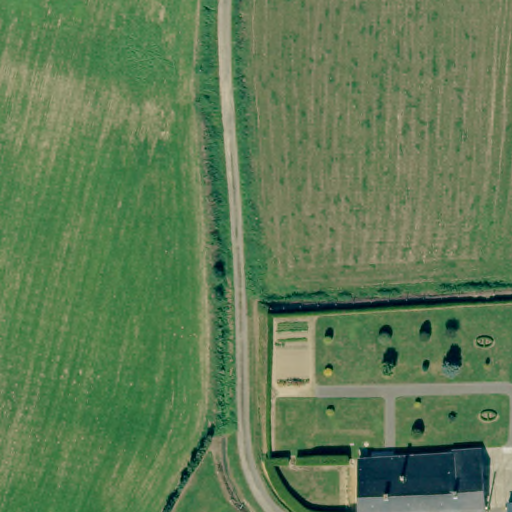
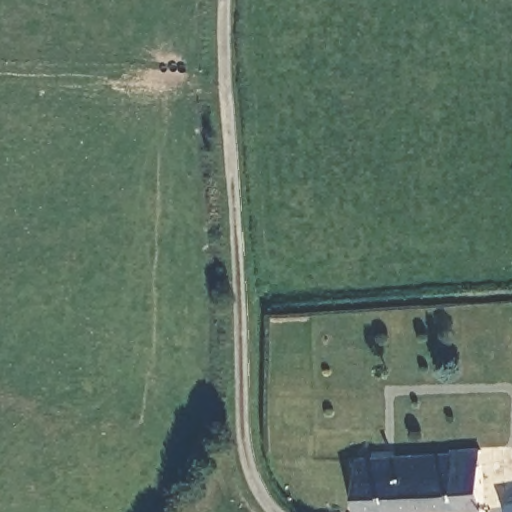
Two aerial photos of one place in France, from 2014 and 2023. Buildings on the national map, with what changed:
unchanged [(441,455),(441,452),(473,451),(476,512),(475,512),(349,512),(348,460),(441,455)]

